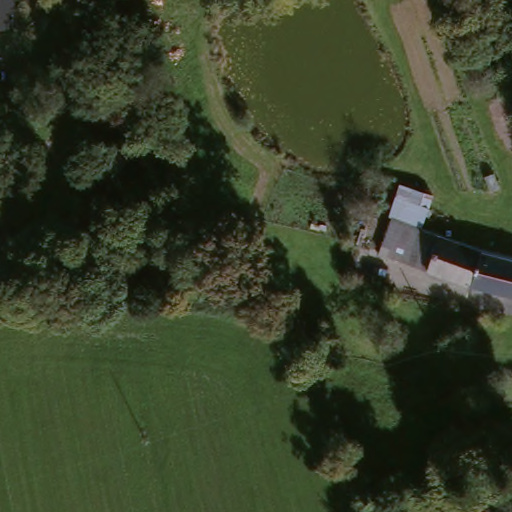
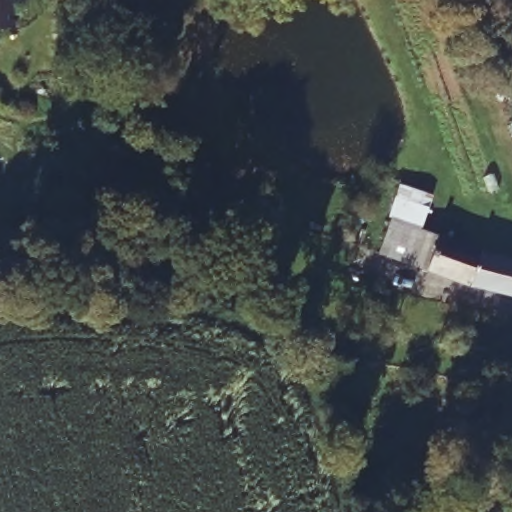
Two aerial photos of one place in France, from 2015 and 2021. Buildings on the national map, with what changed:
unchanged [(0,28),(0,0),(1,0),(2,27),(0,28)]
unchanged [(398,187),(430,197),(418,232),(435,237),(478,254),(512,263),(512,299),(464,288),(420,274),(374,260),(398,187)]

